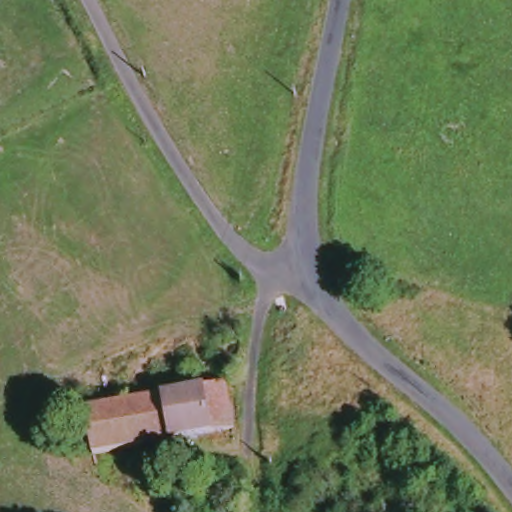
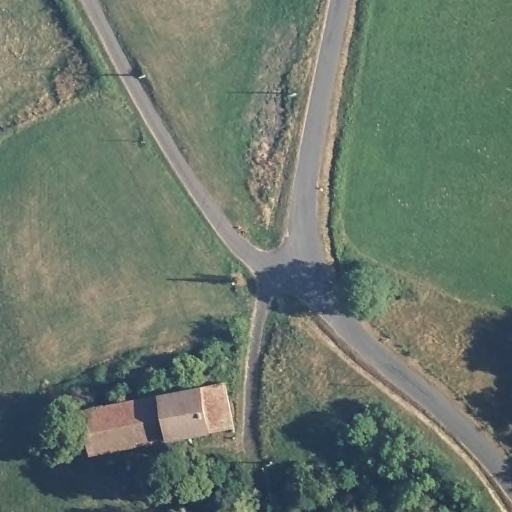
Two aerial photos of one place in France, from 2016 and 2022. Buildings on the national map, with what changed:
unchanged [(85,415),(234,384),(243,427),(94,459),(85,415)]

